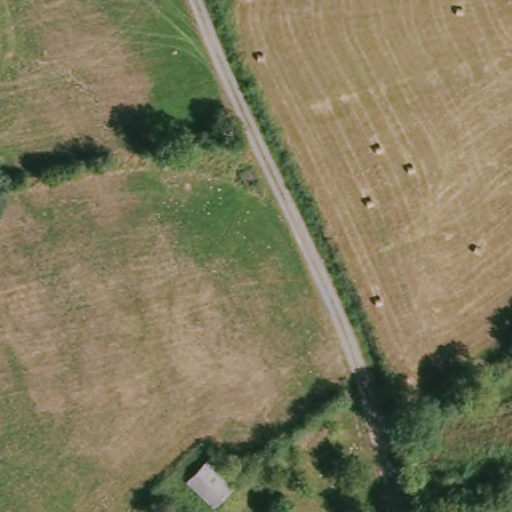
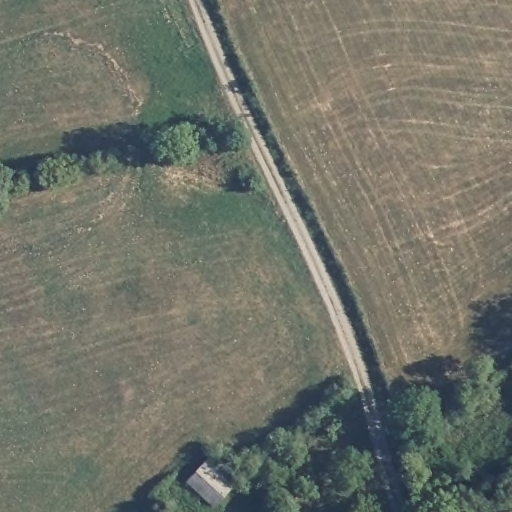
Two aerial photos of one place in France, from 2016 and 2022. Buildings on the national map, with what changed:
unchanged [(214,444),(240,470),(214,493),(189,470),(214,444)]

